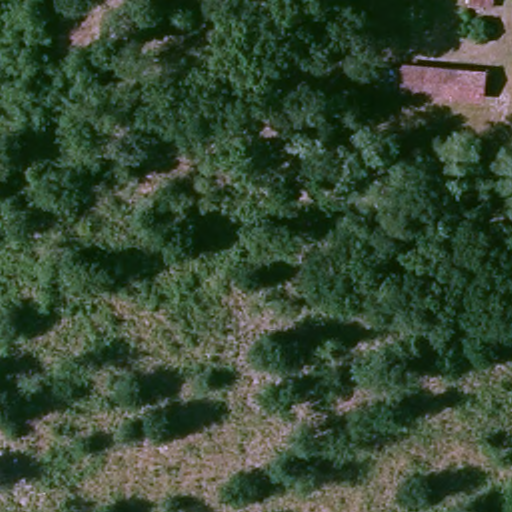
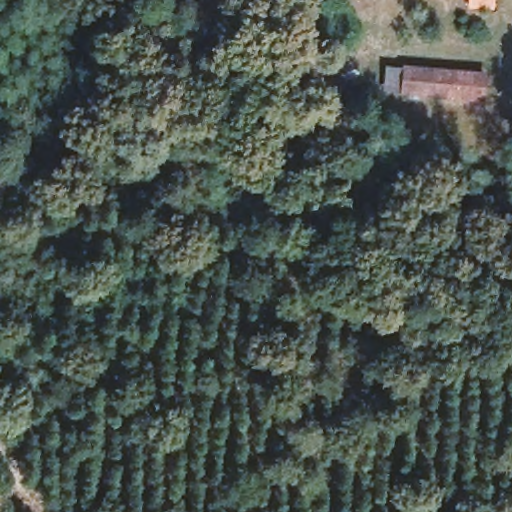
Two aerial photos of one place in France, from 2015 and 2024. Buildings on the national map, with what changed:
unchanged [(493,12),(453,9),(453,0),(493,0),(493,12)]
unchanged [(493,65),(489,110),(424,104),(428,59),(493,65)]

